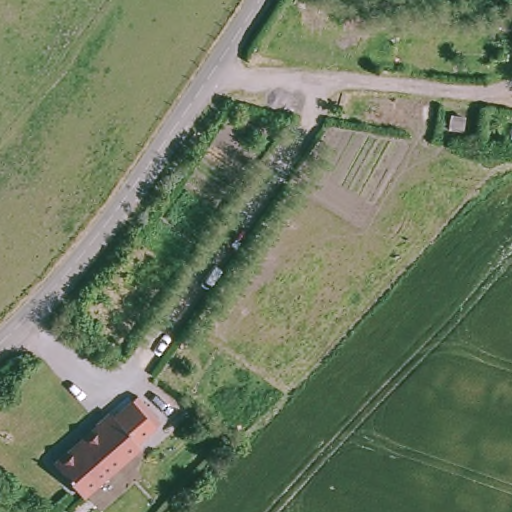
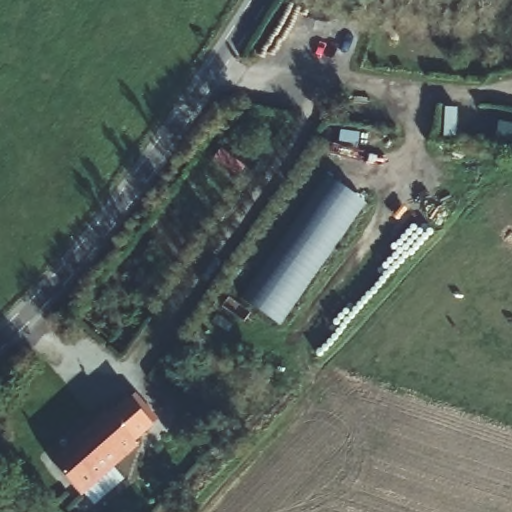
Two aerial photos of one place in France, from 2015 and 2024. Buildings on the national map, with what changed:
new [(501,123),(512,125),(512,145),(498,143),(501,123)]
new [(363,206),(282,329),(240,302),(325,179),(363,206)]
unchanged [(51,470),(100,413),(104,416),(120,397),(147,420),(130,439),(134,442),(85,499),(51,470)]

